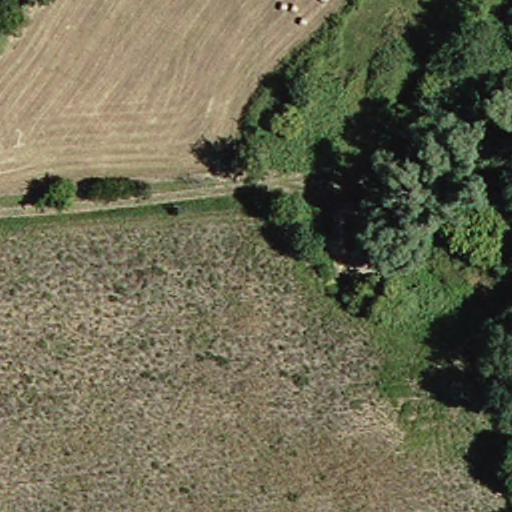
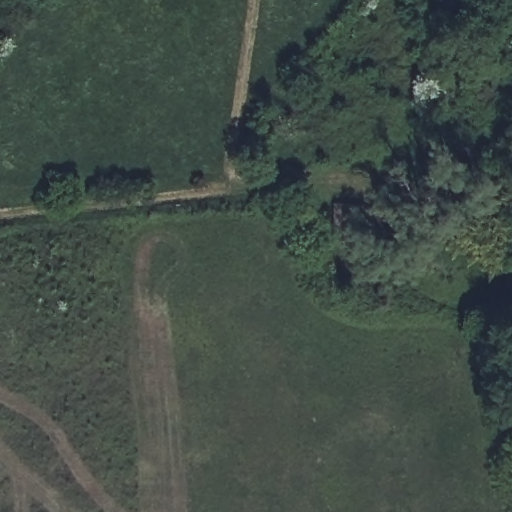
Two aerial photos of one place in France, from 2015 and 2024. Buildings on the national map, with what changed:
unchanged [(366,198),(337,202),(340,225),(324,226),(320,191),(364,186),(366,198)]

